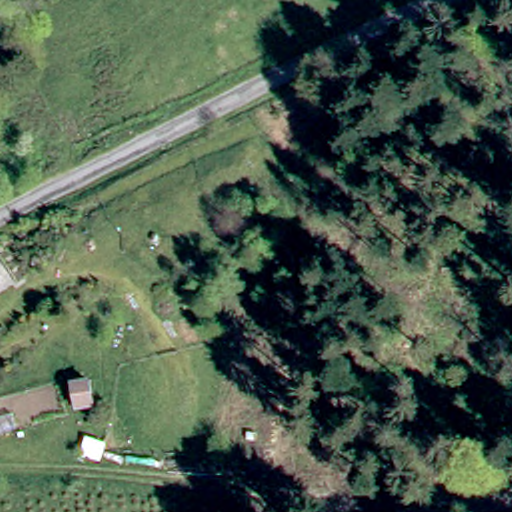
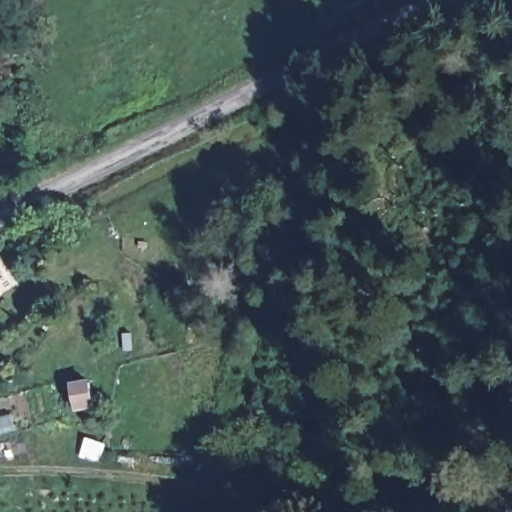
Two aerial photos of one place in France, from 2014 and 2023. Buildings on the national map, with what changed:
unchanged [(7,275),(0,284),(0,270),(7,275)]

